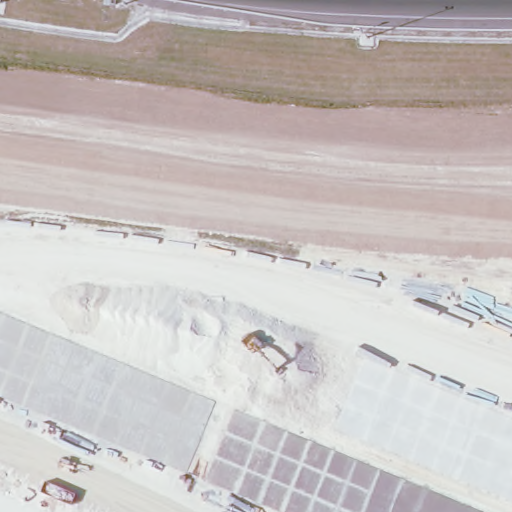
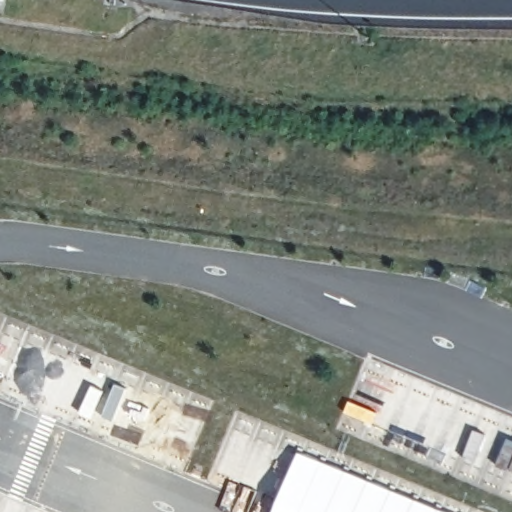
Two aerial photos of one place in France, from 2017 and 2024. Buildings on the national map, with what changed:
new [(274,512),(299,451),(450,512),(274,512)]

